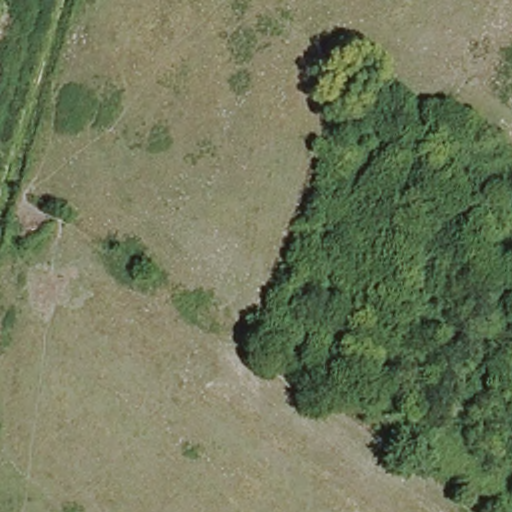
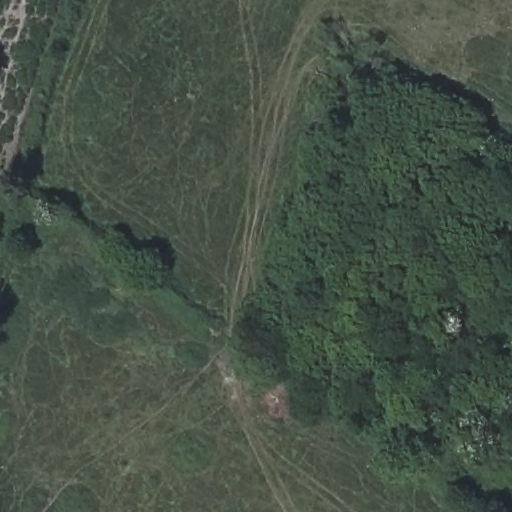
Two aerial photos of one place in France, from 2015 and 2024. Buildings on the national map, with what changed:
[]

